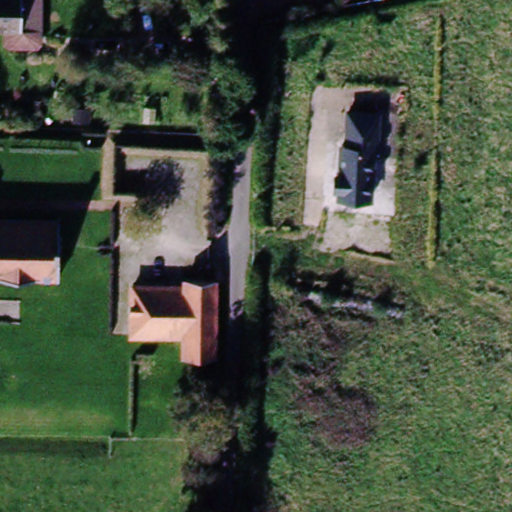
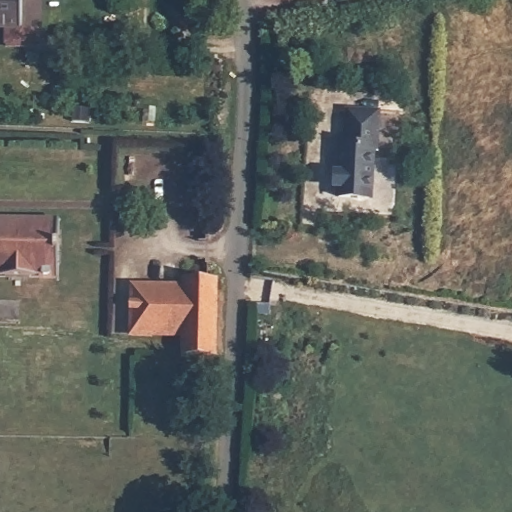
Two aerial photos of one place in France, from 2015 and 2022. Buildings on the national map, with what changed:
unchanged [(30,27),(30,48),(0,48),(0,0),(31,0),(30,27)]
unchanged [(372,192),(367,192),(365,203),(334,203),(335,150),(343,151),(347,110),(375,114),(372,192)]
unchanged [(57,280),(0,279),(0,223),(58,223),(57,280)]
unchanged [(215,281),(215,359),(184,357),(184,336),(134,335),(132,288),(184,289),(185,280),(215,281)]

